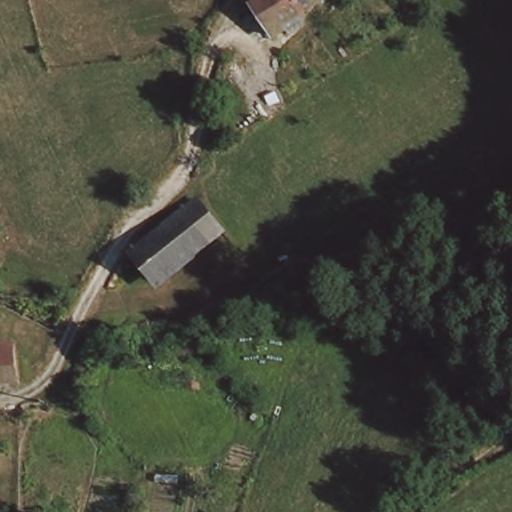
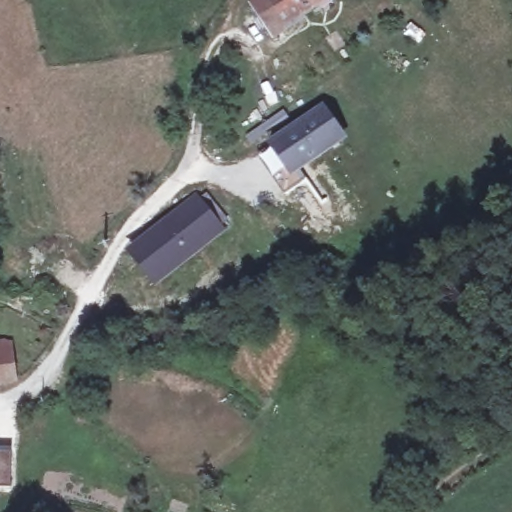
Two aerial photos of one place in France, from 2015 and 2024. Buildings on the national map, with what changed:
unchanged [(256,6),(265,0),(317,0),(295,15),(299,19),(292,23),(293,25),(287,29),(276,36),(272,31),(256,6)]
new [(291,177),(267,144),(322,104),(347,136),(291,177)]
unchanged [(168,224),(197,200),(219,226),(220,228),(191,252),(168,224)]
unchanged [(191,252),(155,280),(134,253),(168,224),(191,252)]
unchanged [(3,378),(0,378),(0,343),(2,343),(3,378)]
new [(0,447),(12,448),(12,488),(0,488),(0,447)]

